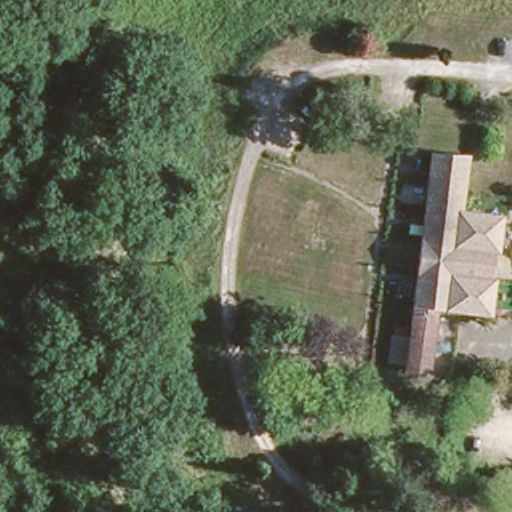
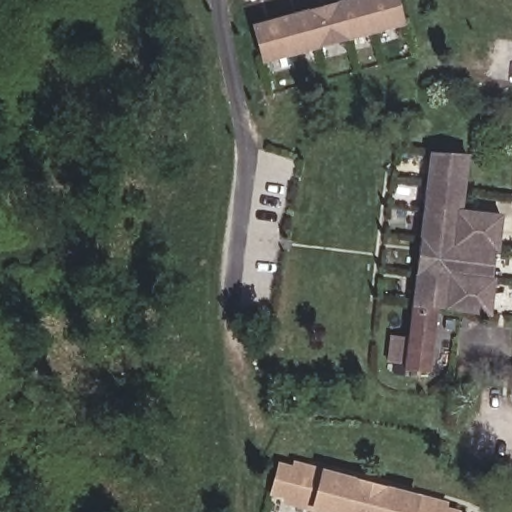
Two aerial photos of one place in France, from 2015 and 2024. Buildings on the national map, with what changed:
new [(333,0),(398,0),(404,24),(262,64),(250,23),(333,0)]
unchanged [(434,128),(464,131),(458,182),(490,186),(489,210),(492,210),(491,224),(512,226),(512,247),(489,245),(478,310),(425,305),(414,384),(395,382),(397,358),(390,357),(391,349),(393,334),(403,268),(403,267),(420,148),(431,149),(434,128)]
unchanged [(375,347),(387,266),(403,268),(393,334),(391,349),(375,347)]
new [(461,510),(461,512),(319,512),(311,510),(311,511),(280,504),(281,499),(269,495),(277,461),(292,465),(292,460),(320,467),(420,493),(448,502),(447,507),(461,510)]

